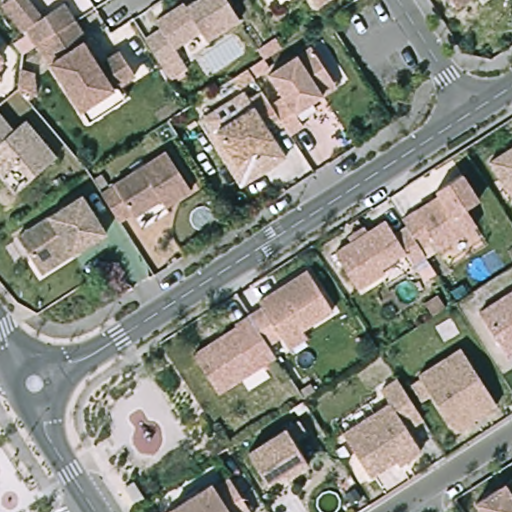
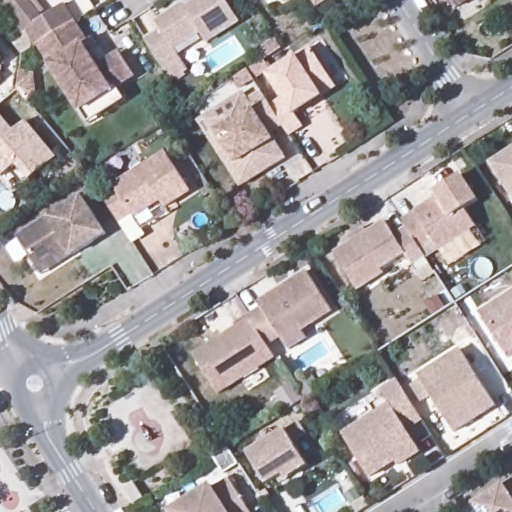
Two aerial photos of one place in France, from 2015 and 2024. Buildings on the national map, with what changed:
unchanged [(27,37),(7,10),(18,2),(16,0),(28,0),(46,24),(67,8),(80,25),(68,33),(42,49),(31,35),(27,37)]
unchanged [(161,29),(155,21),(183,3),(186,8),(198,0),(226,0),(241,22),(209,43),(202,32),(175,50),(177,55),(162,64),(156,55),(146,39),(161,29)]
unchanged [(318,10),(312,0),(335,0),(318,10)]
unchanged [(461,12),(453,0),(480,0),(461,12)]
unchanged [(93,128),(85,115),(42,49),(68,33),(80,25),(93,45),(85,51),(93,64),(97,62),(103,70),(125,56),(140,80),(122,91),(130,104),(93,128)]
unchanged [(0,62),(0,49),(7,57),(0,62)]
unchanged [(282,128),(277,118),(270,109),(284,102),(269,78),(312,52),(336,91),(295,117),(303,130),(289,139),(282,128)]
unchanged [(0,83),(0,71),(6,78),(0,83)]
unchanged [(270,136),(274,143),(237,166),(217,135),(267,103),(270,109),(277,118),(282,128),(270,136)]
unchanged [(30,121),(62,157),(36,179),(22,163),(7,176),(0,169),(0,110),(18,131),(30,121)]
unchanged [(512,147),(512,197),(490,161),(512,147)]
unchanged [(121,179),(166,151),(191,190),(165,206),(161,199),(135,216),(132,214),(120,222),(120,221),(101,192),(121,179)]
unchanged [(444,196),(441,191),(467,174),(483,200),(471,208),(482,224),(445,249),(439,240),(427,249),(412,226),(407,219),(444,196)]
unchanged [(37,267),(17,236),(82,195),(105,232),(72,254),(40,274),(37,267)]
unchanged [(390,220),(400,234),(412,226),(426,249),(427,249),(430,255),(416,264),(409,253),(387,268),(390,272),(363,289),(340,253),(390,220)]
unchanged [(290,354),(282,341),(268,349),(256,329),(254,326),(250,320),(263,312),(260,306),(308,275),(334,315),(303,335),(308,342),(290,354)]
unchanged [(507,352),(485,318),(512,301),(512,360),(507,352)]
unchanged [(254,326),(256,329),(268,349),(276,361),(218,397),(194,359),(237,331),(235,329),(250,320),(254,326)]
unchanged [(418,375),(461,348),(497,405),(455,432),(418,375)]
unchanged [(402,460),(375,477),(348,435),(381,414),(395,405),(386,390),(402,379),(428,419),(412,429),(427,451),(410,462),(405,465),(402,460)]
unchanged [(282,483),(272,489),(252,458),(304,425),(312,439),(299,448),(313,470),(291,484),(285,488),(282,483)]
unchanged [(220,492),(235,482),(253,512),(180,512),(217,488),(220,492)]
unchanged [(512,487),(512,512),(484,512),(481,507),(512,487)]

